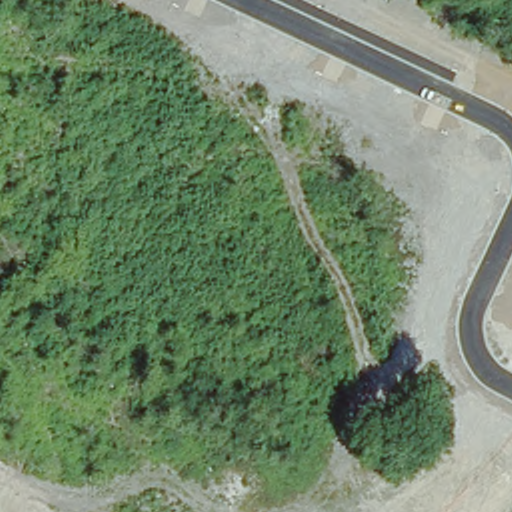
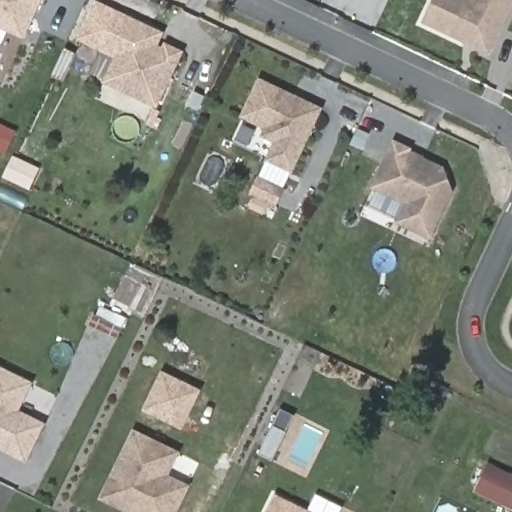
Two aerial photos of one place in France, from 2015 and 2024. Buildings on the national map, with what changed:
new [(0,0),(43,0),(24,40),(0,29),(0,0)]
new [(490,56),(422,24),(434,0),(512,0),(512,9),(490,56)]
new [(103,83),(115,59),(104,54),(124,14),(165,34),(162,42),(185,52),(158,109),(103,83)]
new [(265,161),(273,144),(259,137),(263,129),(239,117),(258,78),(323,109),(291,174),(265,161)]
new [(431,241),(395,223),(404,204),(370,189),(394,140),(413,149),(411,152),(445,167),(453,193),(431,241)]
new [(251,193),(258,178),(283,189),(275,205),(271,203),(265,215),(251,208),(257,196),(251,193)]
new [(0,366),(34,383),(20,411),(46,424),(26,464),(0,451),(0,366)]
new [(161,371),(202,390),(182,430),(143,411),(161,371)]
new [(265,451),(280,410),(291,415),(276,455),(265,451)]
new [(125,512),(99,499),(134,429),(181,452),(170,475),(190,485),(177,512),(125,512)]
demolished [(221,512),(186,483),(189,479),(203,461),(207,464),(209,466),(250,499),(237,512),(221,512)]
new [(490,464),(512,475),(512,508),(476,491),(490,464)]
new [(312,512),(267,512),(275,494),(312,512)]

